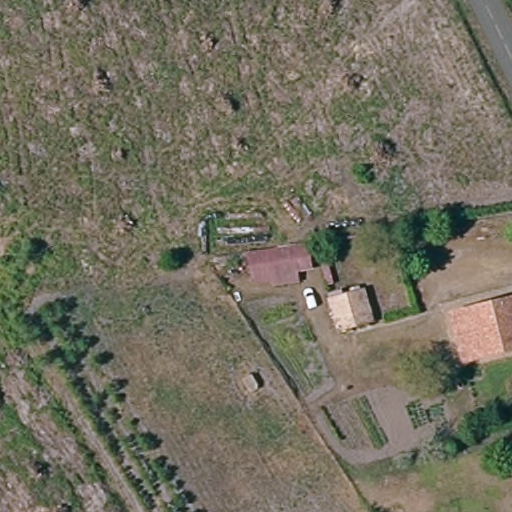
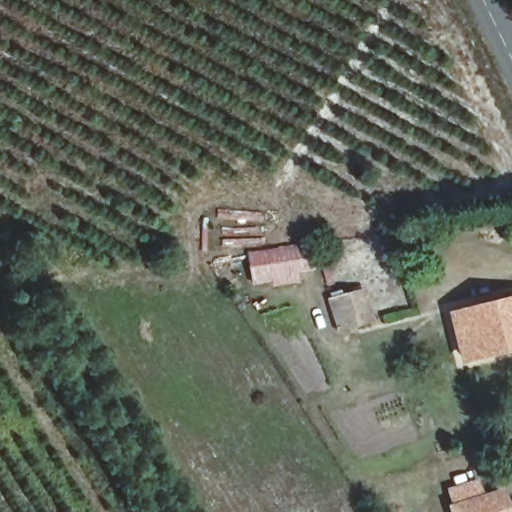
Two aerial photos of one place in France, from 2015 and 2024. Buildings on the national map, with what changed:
unchanged [(244,249),(300,243),(302,272),(287,276),(288,286),(270,290),(268,283),(246,289),(244,249)]
unchanged [(356,291),(365,323),(331,331),(321,299),(356,291)]
unchanged [(512,351),(453,363),(440,311),(512,295),(512,351)]
new [(503,488),(511,512),(450,512),(447,505),(503,488)]

